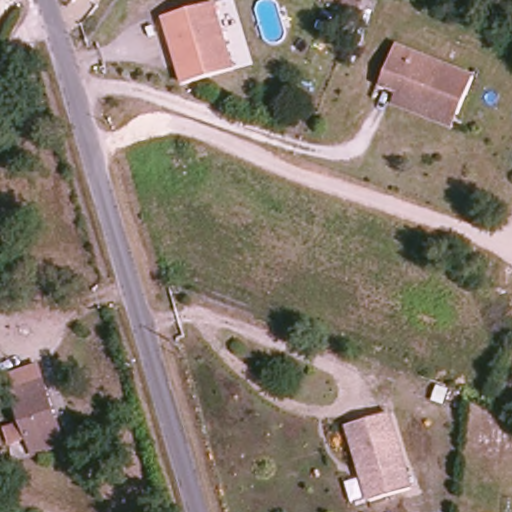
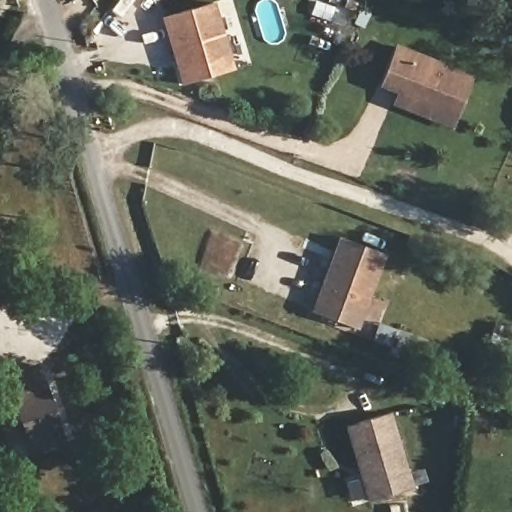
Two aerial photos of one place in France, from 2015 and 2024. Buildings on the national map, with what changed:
unchanged [(164,20),(214,7),(233,71),(183,85),(164,20)]
unchanged [(390,105),(396,93),(376,85),(394,46),(472,78),(458,119),(453,130),(390,105)]
new [(311,312),(338,238),(384,254),(359,329),(311,312)]
unchanged [(4,425),(22,420),(10,375),(44,366),(65,445),(32,454),(29,442),(10,448),(4,425)]
unchanged [(415,494),(369,506),(363,483),(349,428),(360,425),(392,416),(415,494)]

